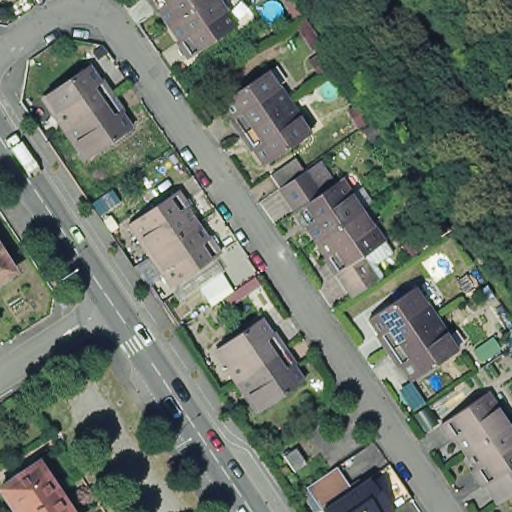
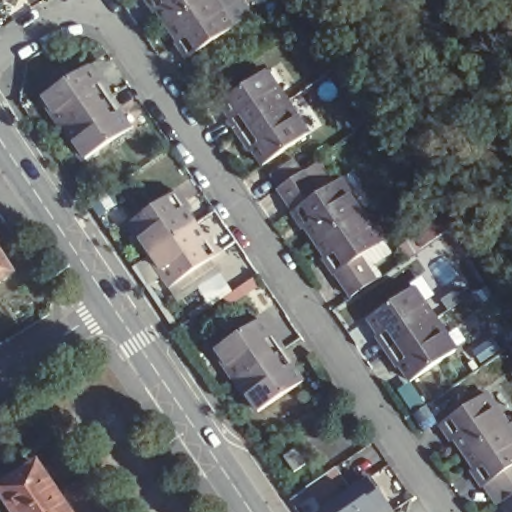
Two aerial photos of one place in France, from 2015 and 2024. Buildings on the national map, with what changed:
unchanged [(173,27),(162,11),(159,14),(149,0),(213,0),(173,27)]
unchanged [(224,11),(228,8),(240,25),(190,59),(179,43),(182,40),(173,27),(213,0),(217,0),(224,11)]
unchanged [(96,81),(100,79),(110,93),(59,128),(50,114),(53,111),(42,95),(86,66),(96,81)]
unchanged [(276,94),(279,92),(292,111),(240,145),(228,128),(232,125),(222,110),(267,80),(276,94)]
unchanged [(120,108),(117,111),(127,126),(85,156),(72,140),(70,143),(59,128),(110,93),(120,108)]
unchanged [(300,123),(297,125),(307,141),(264,171),(252,155),(248,158),(240,145),(292,111),(300,123)]
unchanged [(302,231),(292,214),(294,212),(279,189),(277,190),(269,178),(294,161),(302,173),(306,171),(321,194),(342,178),(353,195),(349,198),(359,214),(317,243),(307,228),(302,231)]
unchanged [(184,208),(181,210),(189,221),(145,252),(136,240),(132,242),(122,226),(172,190),(184,208)]
unchanged [(352,298),(337,274),(334,276),(322,258),(326,256),(317,243),(359,214),(368,228),(374,225),(386,242),(360,259),(376,281),(352,298)]
unchanged [(201,237),(204,235),(215,252),(165,286),(152,270),(156,268),(145,252),(189,221),(201,237)]
unchanged [(0,253),(12,271),(0,280),(0,253)]
unchanged [(427,304),(432,300),(444,318),(390,355),(377,336),(382,333),(372,320),(417,289),(427,304)]
unchanged [(453,330),(448,333),(460,350),(414,382),(402,364),(397,366),(390,355),(444,318),(453,330)]
unchanged [(266,337),(271,334),(280,348),(228,384),(219,370),(222,367),(211,351),(255,321),(266,337)]
unchanged [(291,366),(287,368),(299,384),(255,413),(244,396),(239,400),(228,384),(280,348),(291,366)]
unchanged [(497,407),(492,408),(503,424),(482,438),(463,451),(452,435),(449,437),(438,421),(484,390),(497,407)]
unchanged [(512,437),(512,463),(484,481),(481,483),(471,467),(472,466),(463,451),(482,438),(503,424),(512,437)]
unchanged [(314,453),(301,461),(289,444),(302,436),(314,453)]
unchanged [(371,475),(392,508),(387,512),(325,512),(306,484),(327,469),(336,463),(352,488),(371,475)]
unchanged [(497,500),(484,481),(512,463),(512,490),(497,500)]
unchanged [(33,512),(8,512),(0,500),(0,486),(34,465),(54,498),(33,512)]
unchanged [(33,512),(54,498),(63,512),(33,512)]

